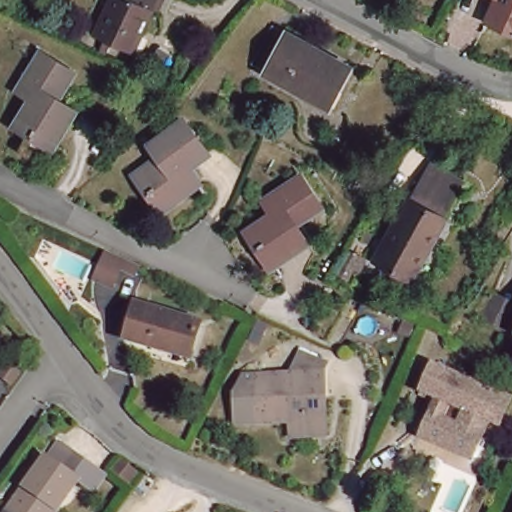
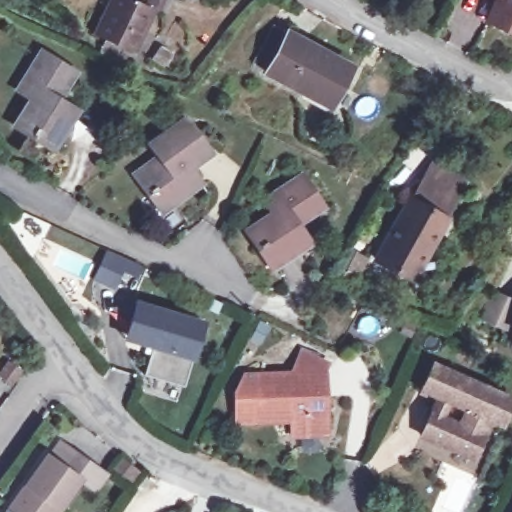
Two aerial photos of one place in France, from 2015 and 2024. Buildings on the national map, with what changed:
unchanged [(133,51),(95,33),(111,0),(157,0),(133,51)]
unchanged [(495,0),(512,0),(512,32),(486,21),(495,0)]
unchanged [(338,111),(275,77),(277,73),(265,67),(282,35),(294,41),(295,39),(359,72),(338,111)]
unchanged [(170,54),(163,66),(150,59),(158,47),(170,54)]
unchanged [(38,142),(20,131),(37,102),(23,94),(45,57),(78,77),(61,104),(78,115),(59,145),(55,152),(38,142)]
unchanged [(146,189),(133,172),(159,152),(149,140),(184,114),(209,148),(188,163),(198,177),(165,202),(159,207),(146,189)]
unchanged [(461,186),(406,283),(371,265),(414,185),(418,187),(428,168),(461,186)]
unchanged [(257,244),(245,226),(271,208),(262,195),(298,171),(319,202),(293,220),(304,237),(275,256),(268,261),(257,244)]
unchanged [(137,268),(133,277),(120,271),(111,290),(89,281),(101,252),(137,268)]
unchanged [(363,260),(359,269),(353,267),(348,277),(341,272),(352,254),(363,260)]
unchanged [(507,331),(482,320),(493,296),(512,304),(512,319),(507,331)]
unchanged [(201,321),(192,352),(153,341),(152,346),(132,341),(136,326),(129,324),(135,302),(201,321)]
unchanged [(240,415),(239,393),(232,393),(242,372),(256,372),(256,375),(286,373),(297,350),(322,359),(323,372),(325,433),(290,436),(289,419),(240,421),(240,415)]
unchanged [(505,425),(494,420),(477,458),(425,436),(442,397),(425,390),(436,365),(512,397),(512,408),(505,425)]
unchanged [(52,512),(6,512),(46,456),(49,457),(60,441),(77,453),(107,473),(96,490),(79,478),(58,508),(55,507),(52,512)]

